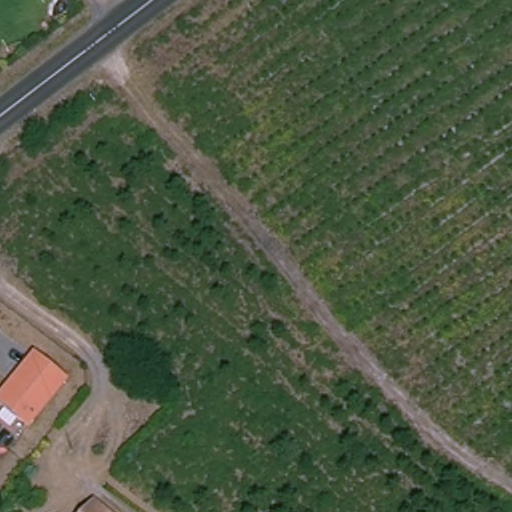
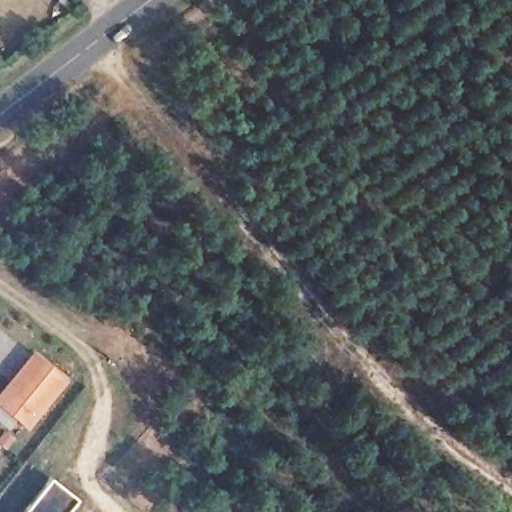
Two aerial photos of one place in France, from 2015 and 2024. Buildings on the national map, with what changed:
unchanged [(9,382),(30,355),(34,359),(58,377),(24,421),(0,402),(0,394),(9,382)]
new [(65,512),(23,512),(50,478),(76,498),(65,512)]
demolished [(90,512),(94,507),(100,512),(90,512)]

